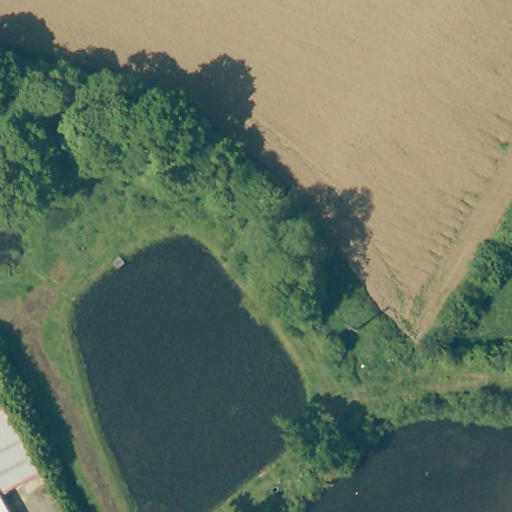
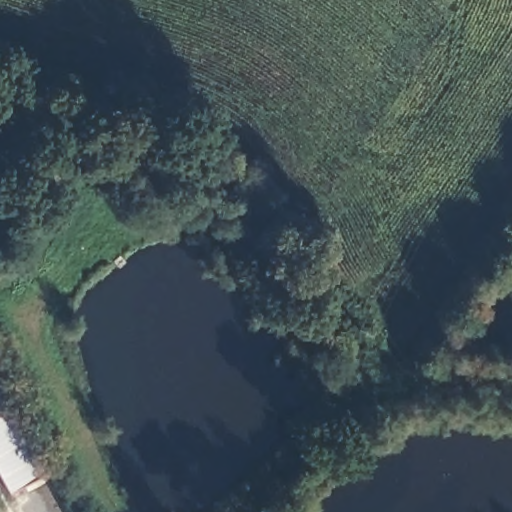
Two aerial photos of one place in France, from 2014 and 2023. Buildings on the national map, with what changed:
unchanged [(37,463),(44,475),(9,493),(0,476),(0,413),(11,408),(21,429),(37,463)]

